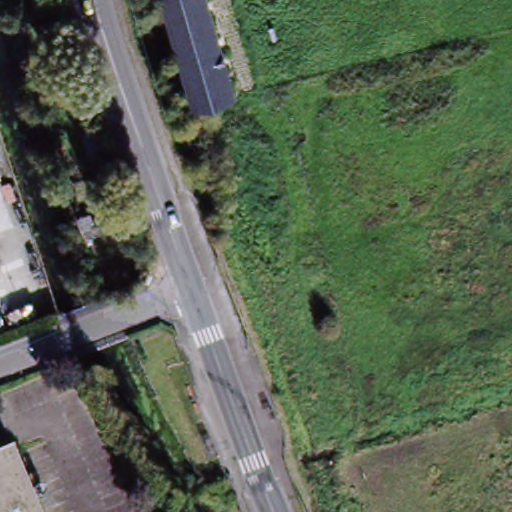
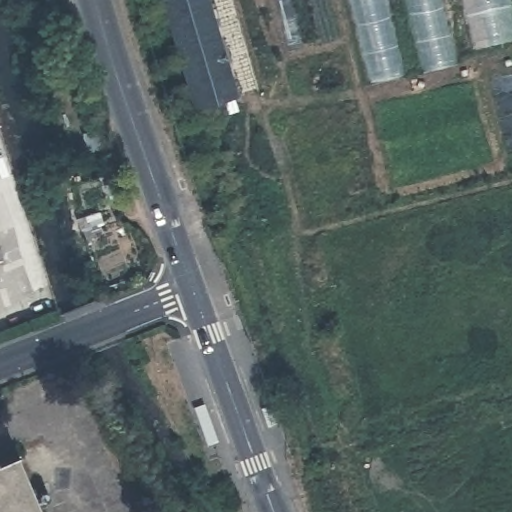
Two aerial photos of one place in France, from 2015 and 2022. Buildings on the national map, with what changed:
unchanged [(197,110),(164,0),(209,0),(238,99),(197,110)]
new [(373,81),(353,0),(384,0),(402,76),(373,81)]
new [(427,71),(410,0),(439,0),(455,67),(427,71)]
new [(512,18),(512,41),(476,50),(464,0),(508,0),(512,18)]
unchanged [(19,464),(38,512),(0,512),(0,472),(19,464)]

